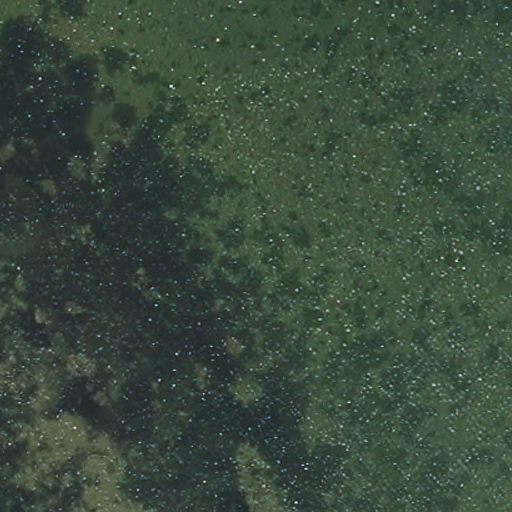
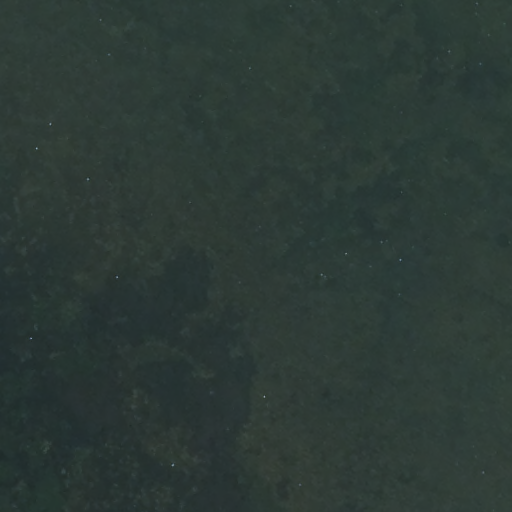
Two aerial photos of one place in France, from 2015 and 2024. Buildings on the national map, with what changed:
[]

